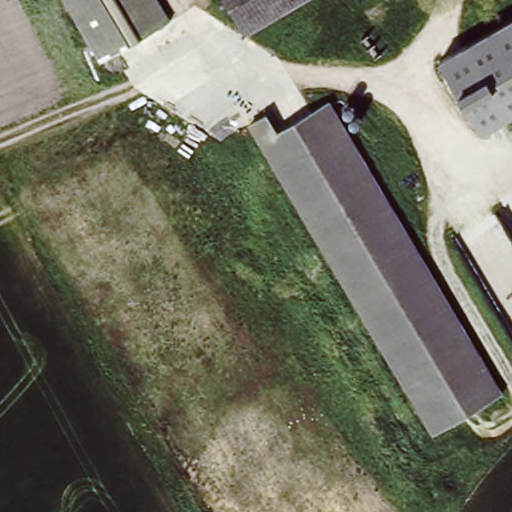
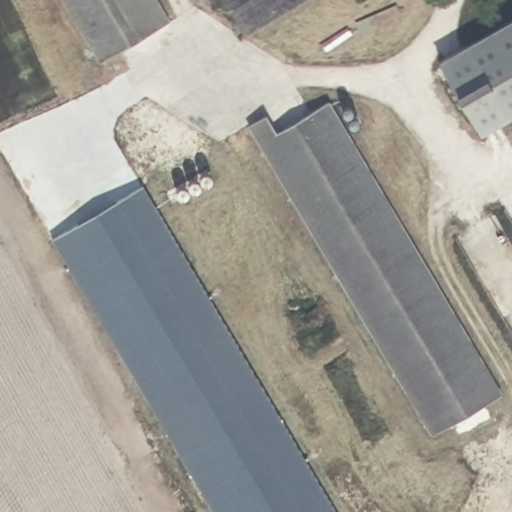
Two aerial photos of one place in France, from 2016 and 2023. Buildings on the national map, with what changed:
unchanged [(64,0),(161,0),(170,15),(98,55),(64,0)]
unchanged [(222,0),(314,0),(244,38),(222,0)]
unchanged [(512,113),(472,136),(430,57),(512,11),(512,113)]
unchanged [(430,436),(243,125),(265,111),(275,129),(329,100),(333,107),(347,100),(358,120),(346,127),(503,392),(430,436)]
new [(140,181),(334,512),(212,512),(45,232),(140,181)]

